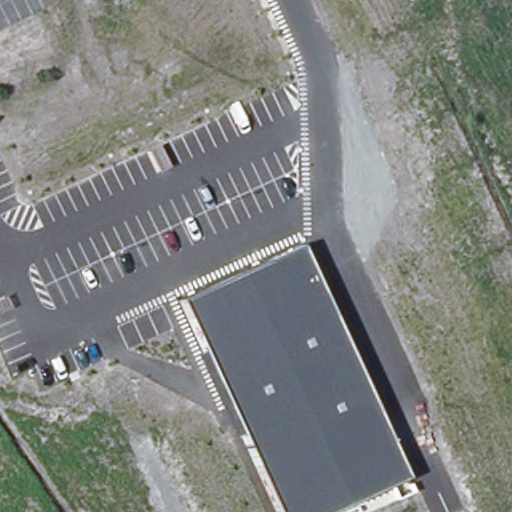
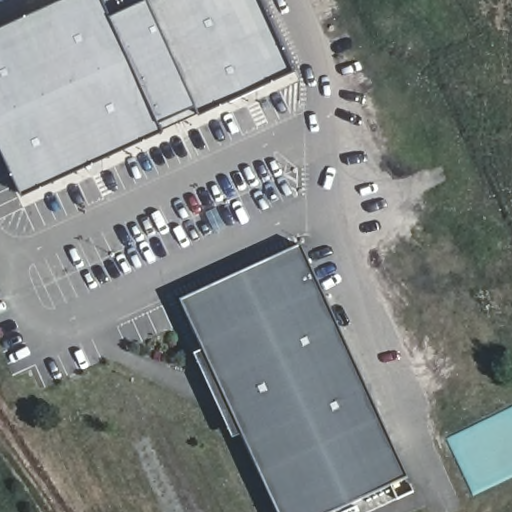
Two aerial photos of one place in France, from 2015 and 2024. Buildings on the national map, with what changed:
new [(295,68),(198,112),(163,129),(23,193),(0,144),(0,25),(55,0),(263,0),(295,68)]
unchanged [(396,485),(339,512),(281,512),(243,434),(232,438),(195,355),(204,351),(183,305),(302,246),(419,489),(404,497),(396,485)]

